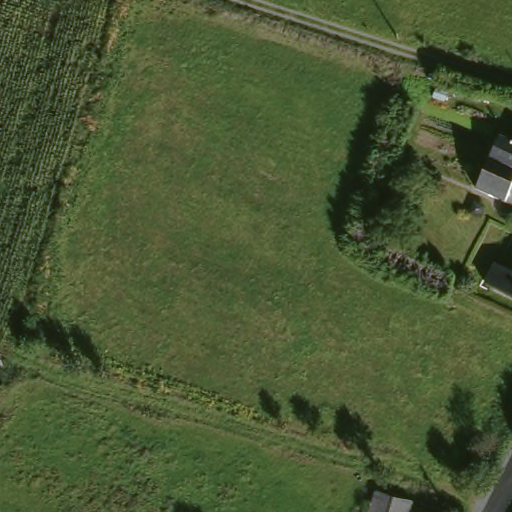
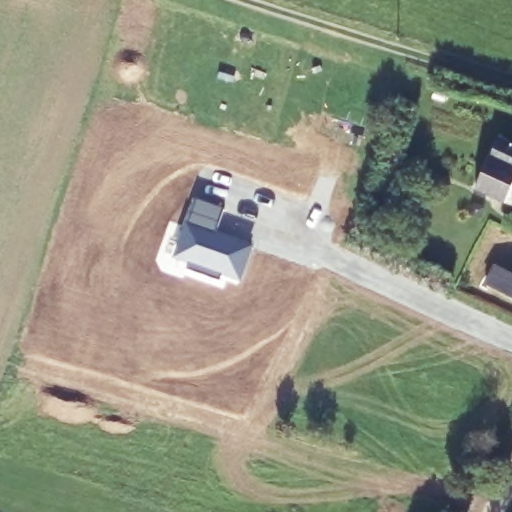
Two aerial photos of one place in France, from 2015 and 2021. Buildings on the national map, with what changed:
unchanged [(501,203),(473,190),(494,144),(512,152),(512,186),(509,185),(501,203)]
new [(192,190),(218,197),(208,227),(252,242),(241,280),(222,273),(219,282),(184,271),(187,262),(172,257),(192,190)]
unchanged [(375,490),(395,494),(391,512),(370,512),(375,490)]

